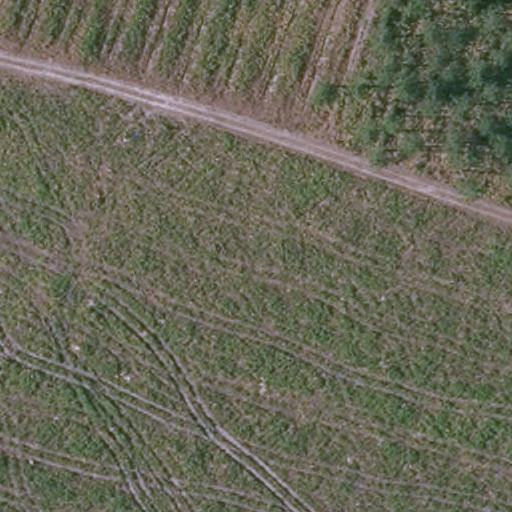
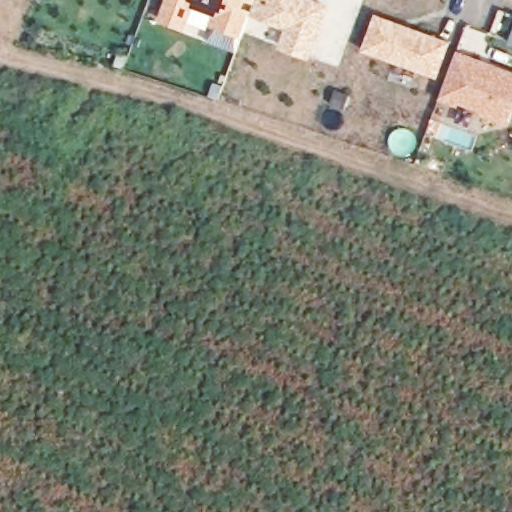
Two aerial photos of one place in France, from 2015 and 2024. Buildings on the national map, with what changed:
new [(330,4),(311,59),(277,48),(285,28),(249,16),(241,40),(209,29),(214,15),(193,8),(186,31),(157,22),(165,0),(319,0),(330,4)]
new [(452,41),(437,78),(362,51),(374,13),(452,41)]
new [(512,34),(512,44),(509,43),(512,34)]
new [(512,109),(507,124),(480,115),(482,111),(460,102),(458,106),(438,98),(457,50),(512,70),(512,109)]

